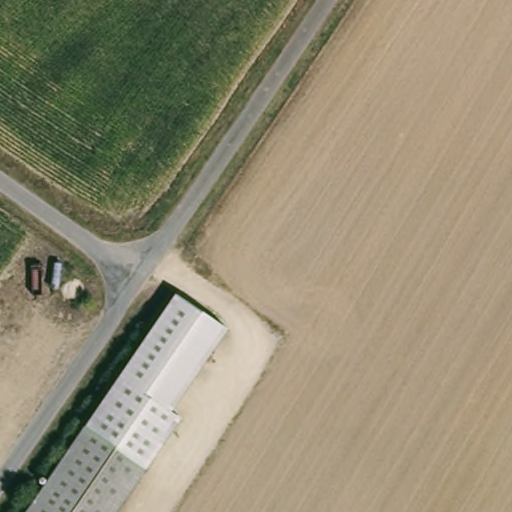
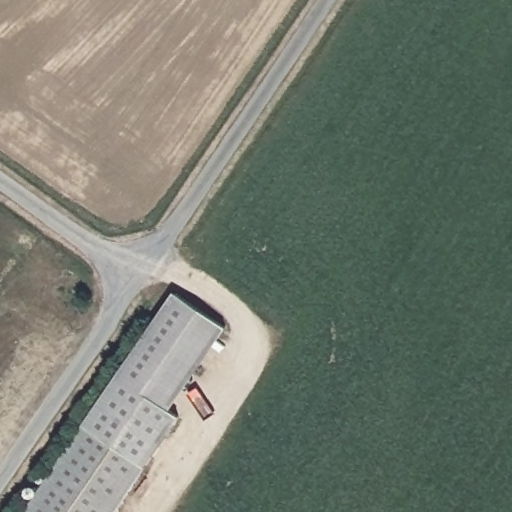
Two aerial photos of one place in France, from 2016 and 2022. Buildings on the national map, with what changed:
unchanged [(80,425),(172,291),(224,329),(167,412),(176,418),(140,465),(80,425)]
unchanged [(140,465),(109,512),(22,512),(80,425),(140,465)]

